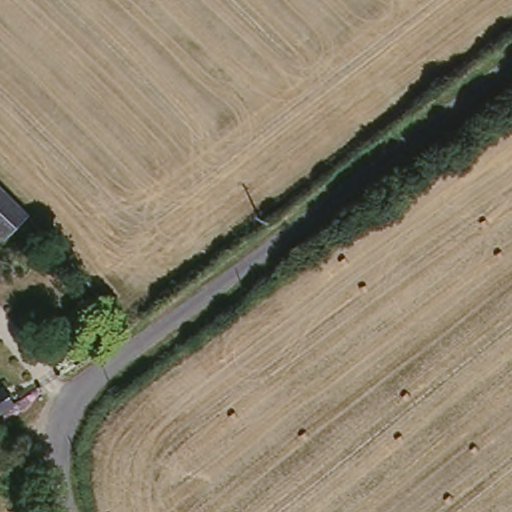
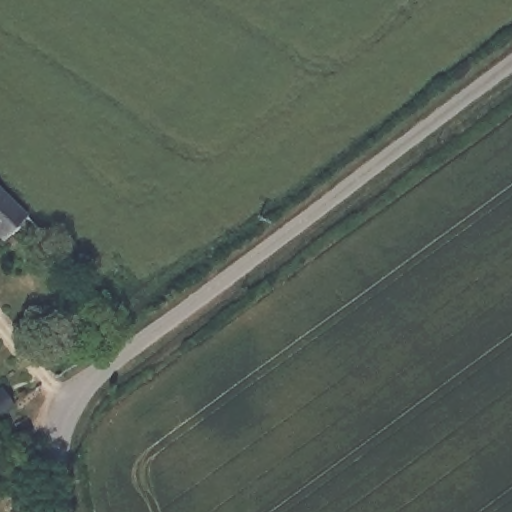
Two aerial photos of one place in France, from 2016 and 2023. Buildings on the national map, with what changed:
unchanged [(0,248),(0,247),(0,189),(2,191),(20,210),(30,220),(0,248)]
unchanged [(5,416),(0,420),(0,393),(4,390),(18,410),(5,416)]

